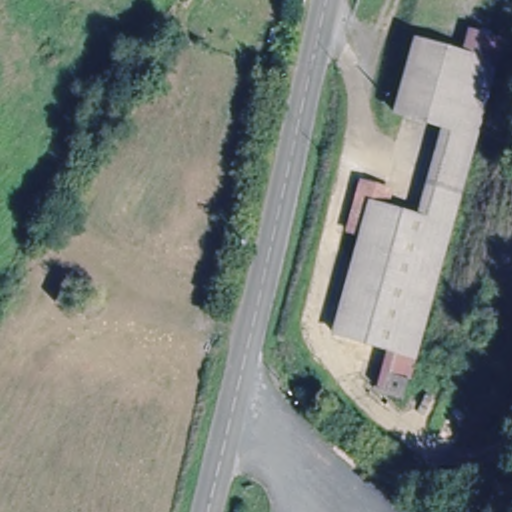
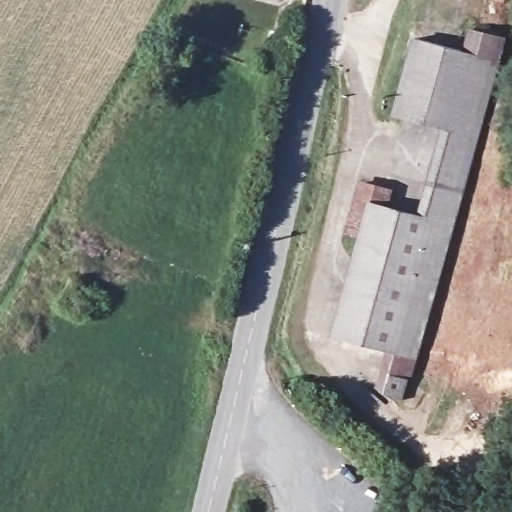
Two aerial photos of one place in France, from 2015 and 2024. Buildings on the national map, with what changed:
unchanged [(477,28),(501,36),(495,60),(476,134),(443,125),(395,110),(414,30),(471,51),(477,28)]
unchanged [(443,125),(476,134),(450,226),(416,216),(443,125)]
unchanged [(387,378),(395,346),(335,328),(361,229),(346,222),(357,175),(385,184),(395,189),(392,208),(416,216),(450,226),(406,384),(387,378)]
unchanged [(96,318),(70,302),(82,275),(113,292),(96,318)]

